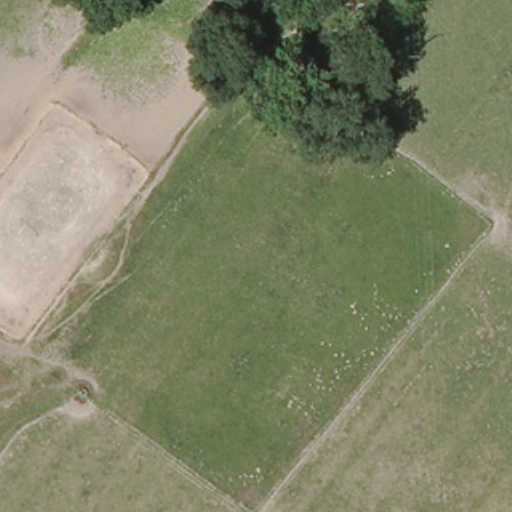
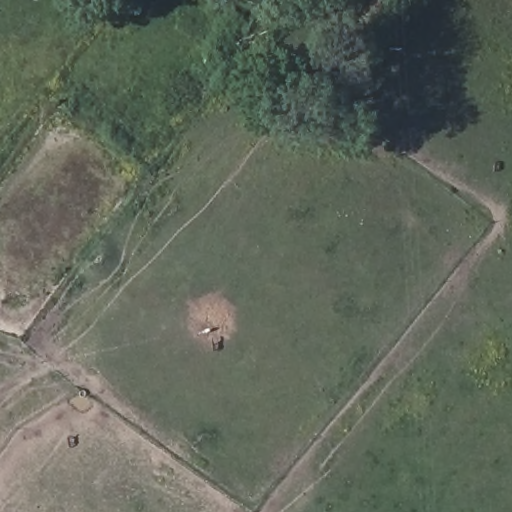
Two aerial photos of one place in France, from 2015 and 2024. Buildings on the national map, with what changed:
[]

